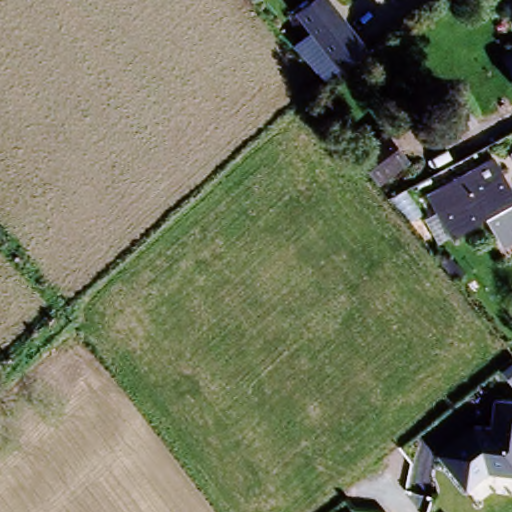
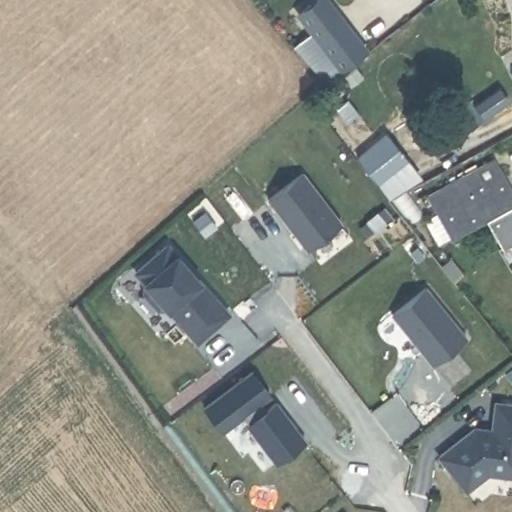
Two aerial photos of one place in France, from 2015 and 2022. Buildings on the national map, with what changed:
unchanged [(331,0),(362,43),(334,63),(330,58),(324,62),(292,16),(315,0),(331,0)]
unchanged [(453,117),(442,124),(424,96),(435,89),(453,117)]
unchanged [(351,166),(378,142),(400,168),(373,192),(351,166)]
unchanged [(426,203),(485,157),(512,193),(512,239),(505,244),(484,216),(454,239),(426,203)]
new [(342,222),(308,249),(267,197),(301,168),(342,222)]
new [(231,311),(197,342),(172,309),(168,312),(140,281),(144,278),(133,268),(165,239),(231,311)]
new [(424,283),(467,338),(433,365),(390,314),(424,283)]
new [(248,368),(267,389),(257,399),(263,406),(273,397),(304,432),(277,455),(246,420),(249,417),(243,410),(223,428),(204,406),(248,368)]
unchanged [(512,472),(492,470),(468,491),(441,454),(493,418),(494,397),(512,400),(512,472)]

